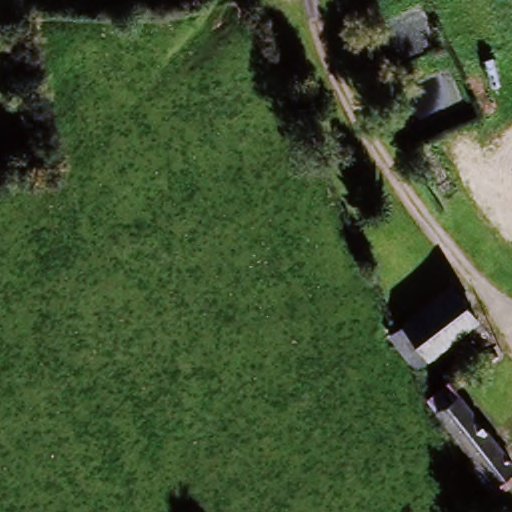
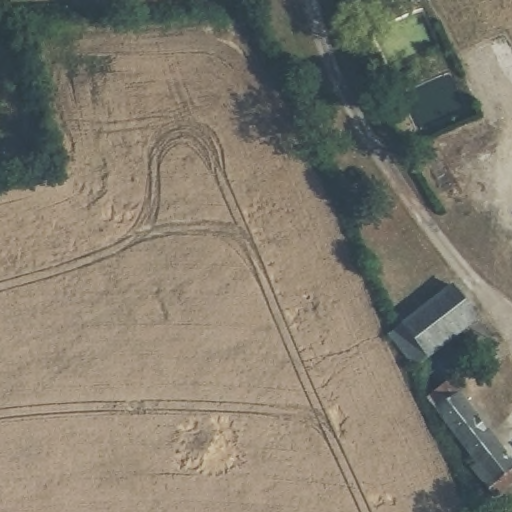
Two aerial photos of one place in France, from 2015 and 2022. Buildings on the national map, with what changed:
unchanged [(379,333),(446,280),(477,316),(413,368),(379,333)]
unchanged [(504,452),(496,458),(504,469),(477,490),(459,466),(473,455),(427,395),(448,378),(504,452)]

